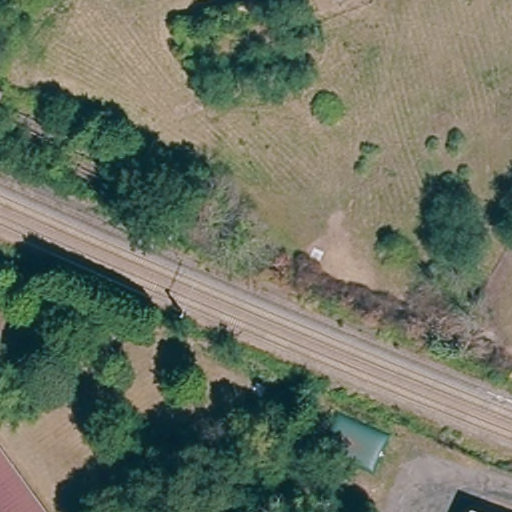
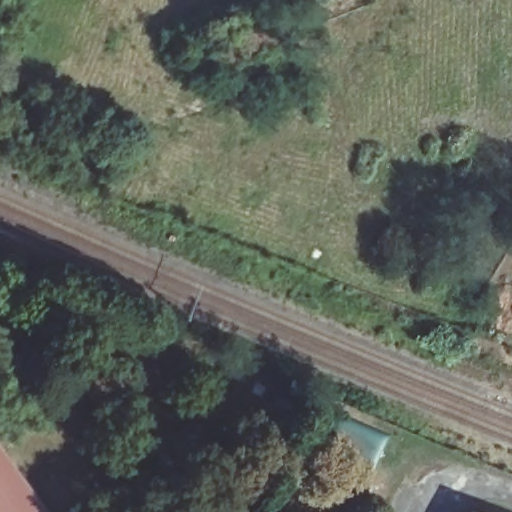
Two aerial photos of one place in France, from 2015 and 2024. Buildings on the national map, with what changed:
unchanged [(50,512),(0,512),(0,438),(50,512)]
unchanged [(480,512),(475,512),(476,511),(480,512)]

